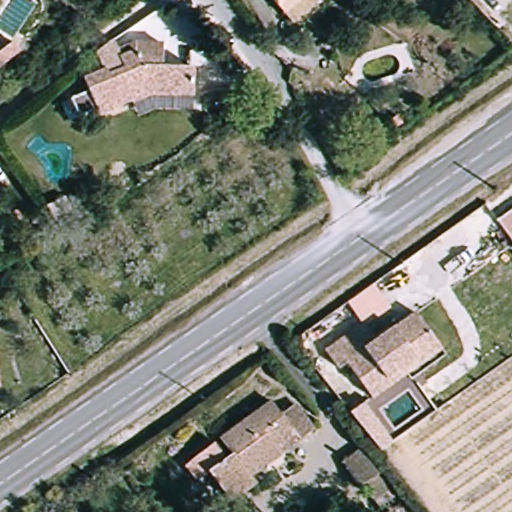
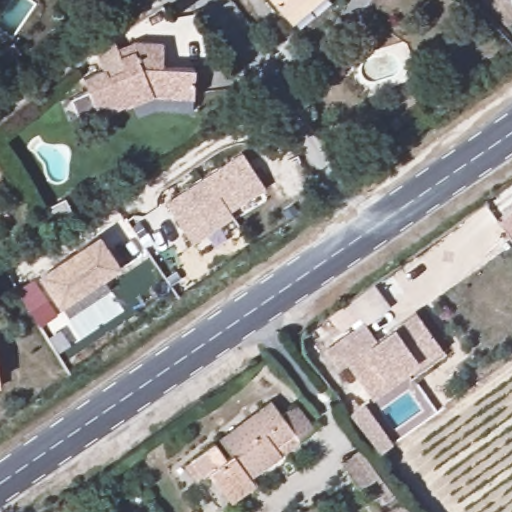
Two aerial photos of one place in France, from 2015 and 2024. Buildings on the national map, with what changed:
unchanged [(291,18),(283,8),(276,0),(312,0),(291,18)]
unchanged [(154,103),(137,111),(131,97),(98,108),(83,73),(106,64),(108,69),(123,63),(119,52),(115,53),(112,46),(135,37),(163,38),(162,61),(192,62),(191,90),(191,105),(154,103)]
new [(192,242),(165,203),(241,152),(265,187),(229,211),(231,216),(192,242)]
unchanged [(497,219),(512,209),(512,238),(511,239),(497,219)]
new [(98,234),(119,266),(59,307),(37,275),(98,234)]
unchanged [(372,392),(346,357),(339,362),(326,344),(360,321),(347,302),(373,283),(390,307),(368,324),(376,335),(415,307),(437,337),(403,362),(407,367),(389,380),(372,392)]
unchanged [(226,489),(211,470),(208,472),(196,481),(183,466),(196,456),(214,442),(224,455),(208,466),(231,449),(220,434),(272,396),(281,409),(295,398),(313,424),(297,436),(295,432),(245,469),(248,473),(255,481),(232,497),(226,489)]
unchanged [(395,496),(386,503),(381,495),(374,500),(363,484),(358,487),(341,462),(359,449),(379,474),(395,496)]

